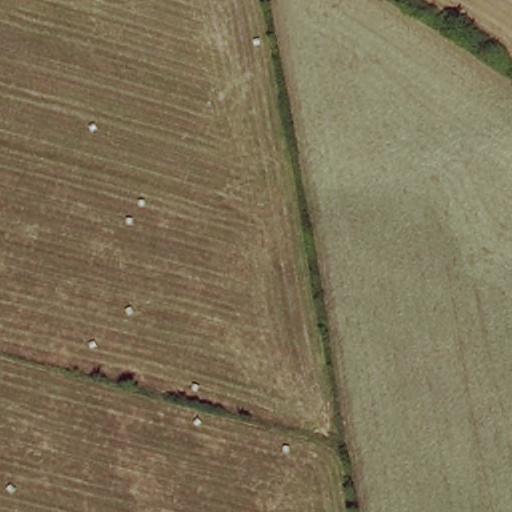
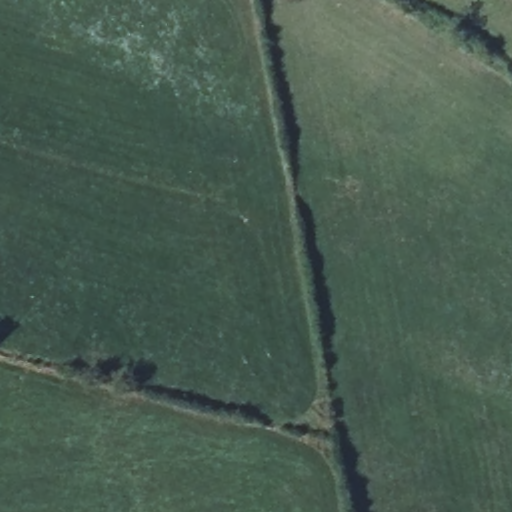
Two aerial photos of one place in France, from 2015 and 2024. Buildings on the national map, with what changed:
[]

